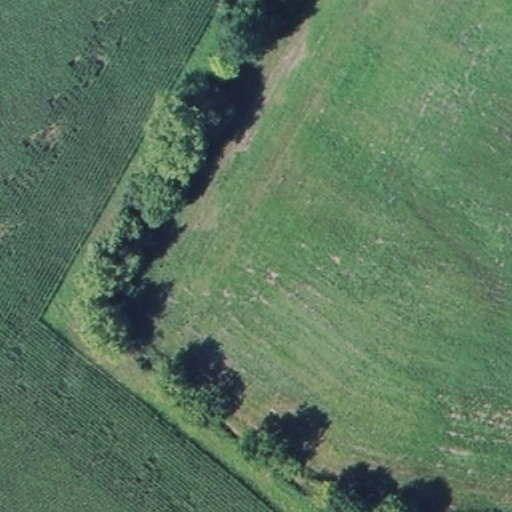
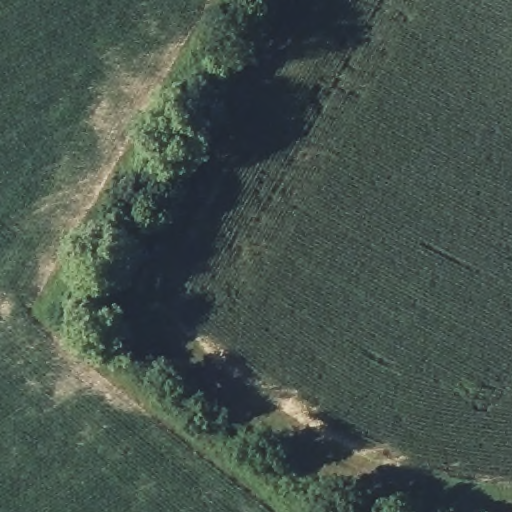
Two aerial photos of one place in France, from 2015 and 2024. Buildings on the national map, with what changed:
unchanged [(400,512),(378,512),(382,500),(401,509),(400,512)]

